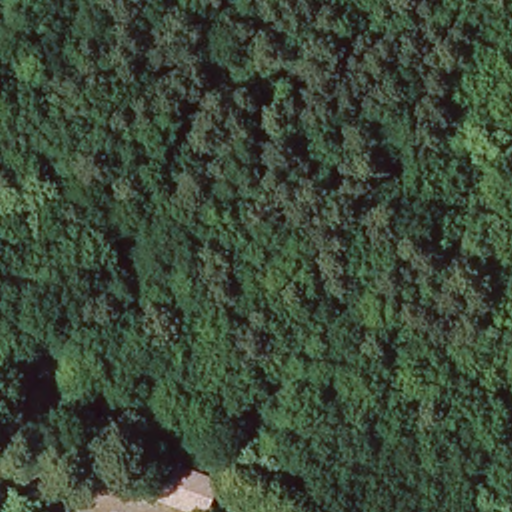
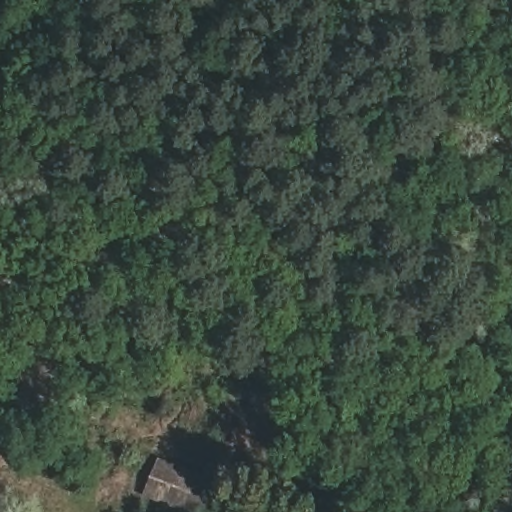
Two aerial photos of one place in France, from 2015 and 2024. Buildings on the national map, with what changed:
unchanged [(217,481),(202,512),(178,512),(142,494),(157,451),(217,481)]

